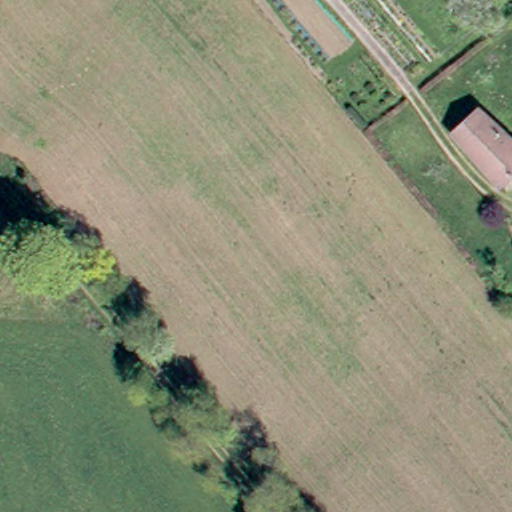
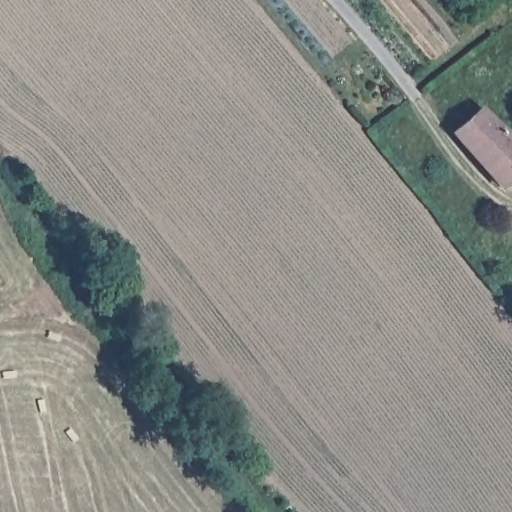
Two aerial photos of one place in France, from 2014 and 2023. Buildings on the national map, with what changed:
unchanged [(497,183),(451,129),(476,106),(512,138),(512,168),(497,183)]

